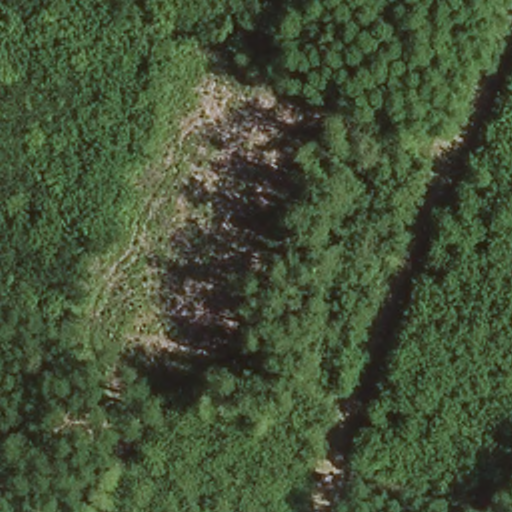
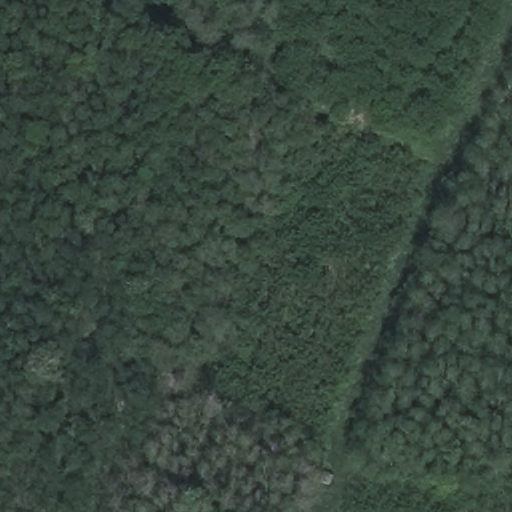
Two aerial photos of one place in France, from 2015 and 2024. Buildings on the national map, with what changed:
unchanged [(341,480),(336,495),(322,490),(328,476),(341,480)]

